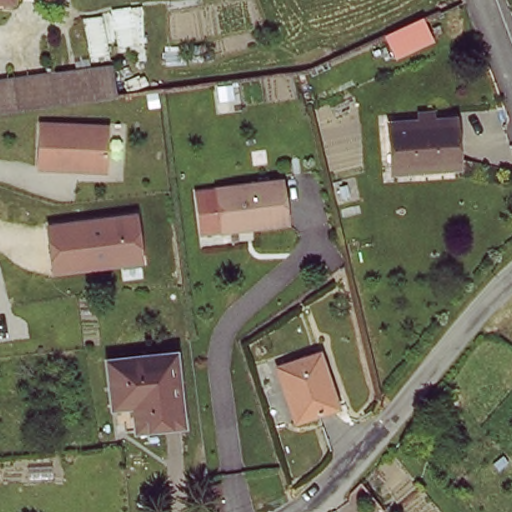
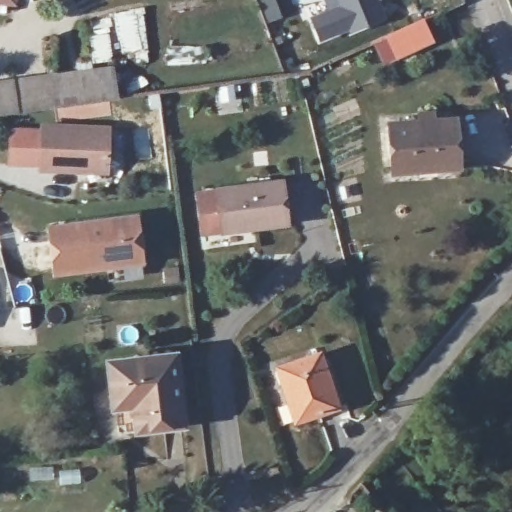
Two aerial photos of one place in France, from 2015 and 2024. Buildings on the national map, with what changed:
new [(349,34),(348,30),(320,42),(310,18),(340,5),(337,0),(381,0),(380,0),(386,19),(349,34)]
unchanged [(395,60),(380,34),(424,14),(438,44),(395,60)]
unchanged [(110,98),(55,105),(52,75),(107,67),(110,98)]
unchanged [(0,112),(0,81),(52,75),(55,105),(0,112)]
unchanged [(458,157),(418,161),(419,169),(395,171),(391,126),(421,124),(421,115),(432,115),(432,122),(455,120),(458,157)]
unchanged [(112,131),(110,171),(85,170),(85,174),(42,172),(44,129),(112,131)]
unchanged [(286,186),(292,230),(225,238),(220,195),(286,186)]
unchanged [(48,226),(138,215),(145,262),(54,275),(48,226)]
unchanged [(170,350),(177,418),(133,423),(130,399),(109,401),(104,357),(170,350)]
unchanged [(319,353),(337,406),(296,420),(279,366),(319,353)]

